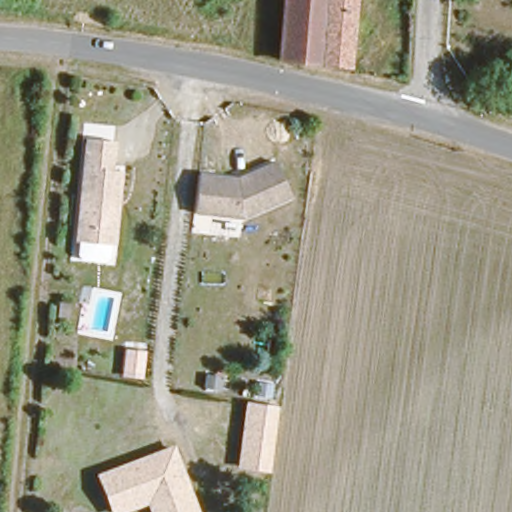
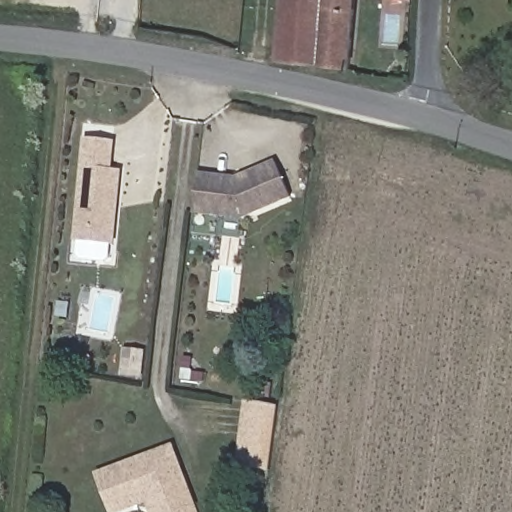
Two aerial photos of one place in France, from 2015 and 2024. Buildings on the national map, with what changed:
unchanged [(350,2),(344,66),(324,65),(314,63),(314,62),(314,59),(287,56),(286,56),(277,55),(281,0),(350,0),(350,2)]
unchanged [(115,140),(112,168),(121,169),(114,243),(77,239),(88,136),(115,140)]
unchanged [(238,190),(279,175),(293,211),(245,229),(195,223),(200,185),(238,190)]
unchanged [(145,359),(142,383),(124,381),(128,357),(145,359)]
unchanged [(239,462),(241,447),(248,398),(277,405),(270,453),(268,468),(239,462)]
unchanged [(113,509),(100,470),(136,459),(146,455),(174,446),(195,511),(196,512),(154,512),(149,497),(113,509)]

